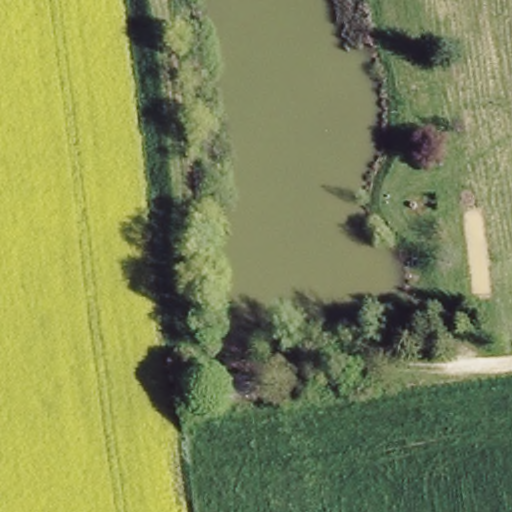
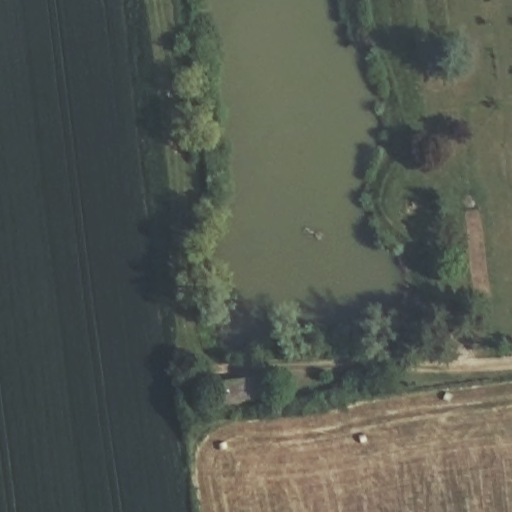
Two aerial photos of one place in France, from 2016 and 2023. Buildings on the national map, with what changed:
unchanged [(226,395),(225,379),(255,378),(256,394),(226,395)]

